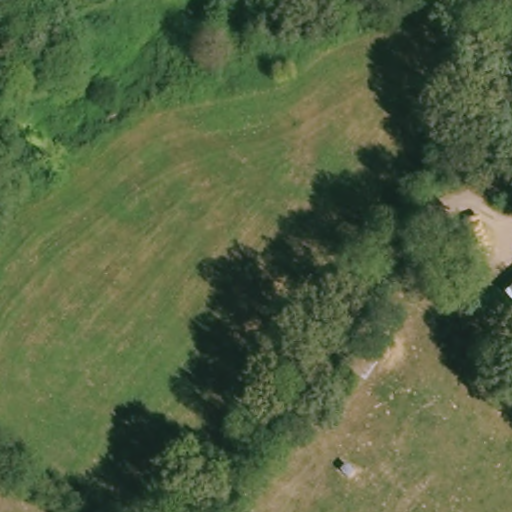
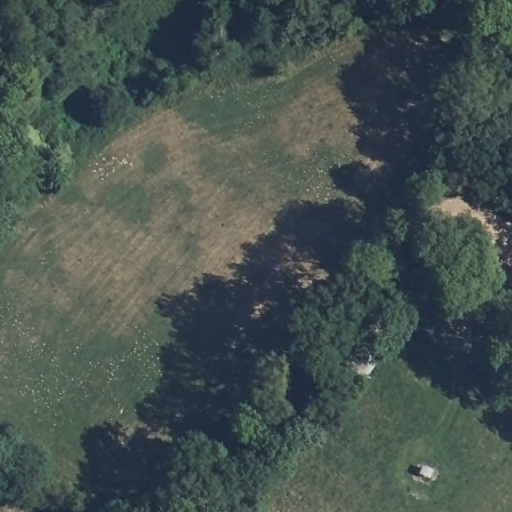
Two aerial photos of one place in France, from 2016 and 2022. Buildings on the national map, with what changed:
unchanged [(512,290),(512,294),(510,292),(512,290)]

